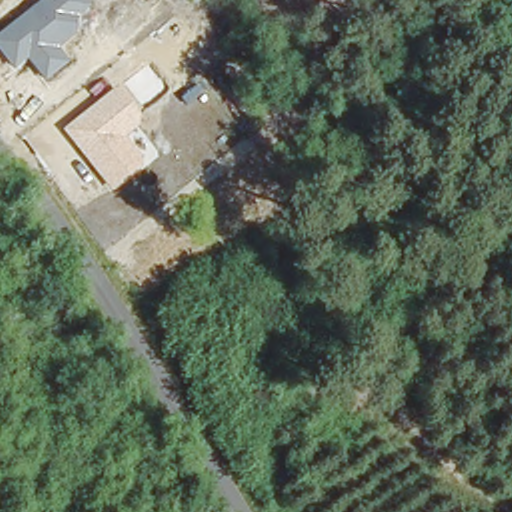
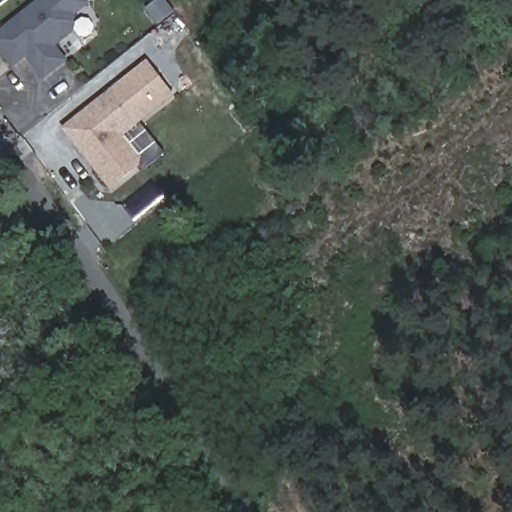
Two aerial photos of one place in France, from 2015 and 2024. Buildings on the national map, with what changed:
unchanged [(76,15),(79,29),(57,46),(69,61),(44,80),(27,58),(13,70),(0,52),(0,33),(41,0),(90,0),(92,3),(76,15)]
new [(143,113),(120,82),(147,61),(175,97),(140,123),(143,113)]
unchanged [(140,123),(127,133),(144,156),(144,166),(112,190),(62,127),(120,82),(143,113),(140,123)]

